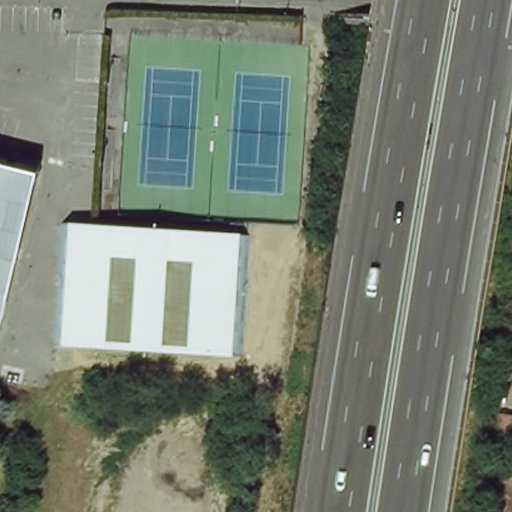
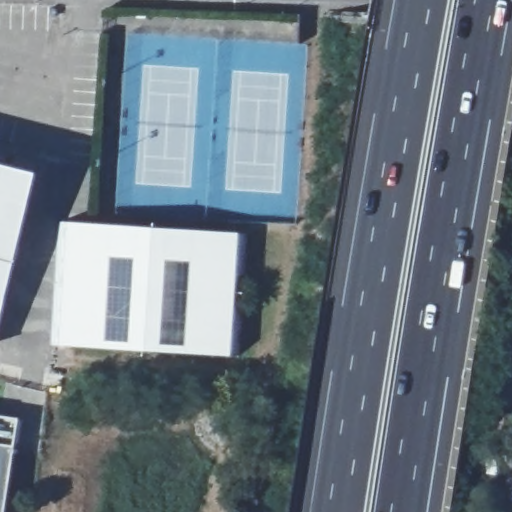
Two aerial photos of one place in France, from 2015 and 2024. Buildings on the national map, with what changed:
unchanged [(7,156),(21,160),(41,165),(0,323),(0,154),(7,156)]
unchanged [(246,356),(57,345),(65,223),(253,235),(246,356)]
unchanged [(507,363),(510,345),(512,345),(512,364),(507,363)]
unchanged [(511,436),(494,442),(498,415),(512,417),(512,431),(511,436)]
new [(19,421),(14,449),(5,512),(0,512),(0,418),(19,421)]

